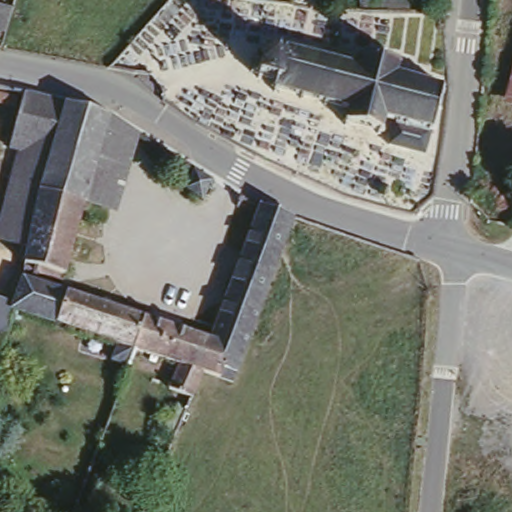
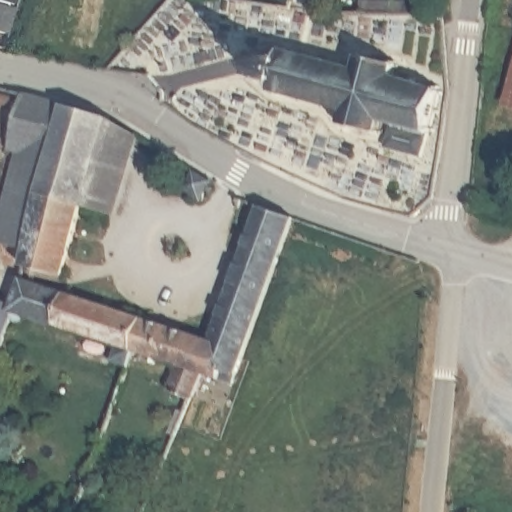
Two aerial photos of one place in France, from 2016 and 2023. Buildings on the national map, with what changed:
unchanged [(409,0),(408,9),(357,4),(358,0),(409,0)]
unchanged [(0,30),(0,3),(13,7),(5,31),(0,30)]
unchanged [(396,121),(386,119),(381,134),(344,124),(348,108),(274,88),(276,80),(250,73),(256,51),(281,58),(285,46),(359,67),(363,53),(400,63),(397,77),(439,89),(423,156),(389,146),(396,121)]
unchanged [(512,47),(512,102),(495,96),(512,47)]
unchanged [(85,205),(63,281),(19,269),(24,251),(0,244),(0,211),(16,155),(7,153),(25,96),(68,106),(86,111),(110,118),(85,205)]
unchanged [(107,211),(85,205),(110,118),(130,131),(107,211)]
unchanged [(215,179),(203,197),(183,186),(194,166),(215,179)]
unchanged [(196,399),(194,403),(174,395),(185,370),(143,356),(6,314),(17,281),(142,320),(209,341),(260,207),(296,220),(232,384),(231,384),(222,407),(196,399)]
unchanged [(3,323),(0,332),(0,321),(3,323)]

